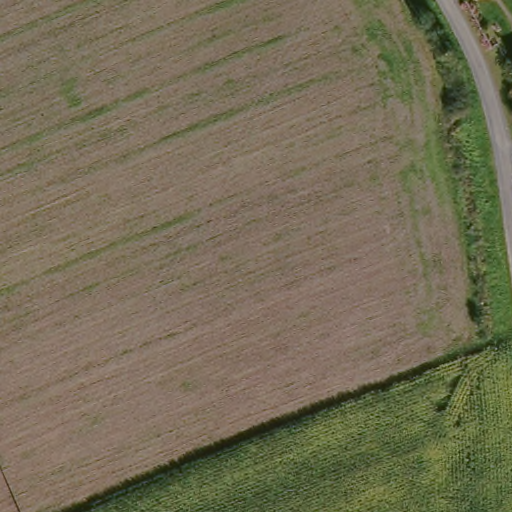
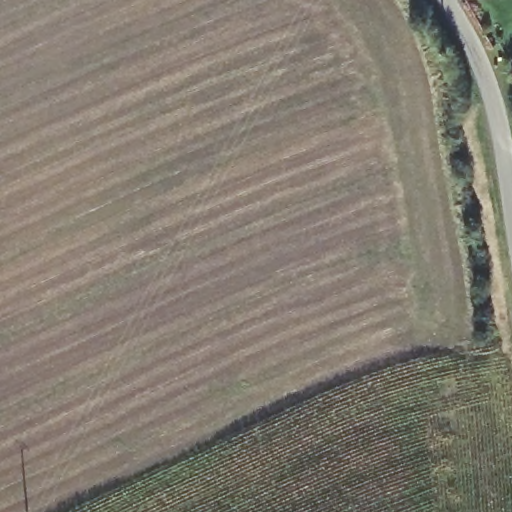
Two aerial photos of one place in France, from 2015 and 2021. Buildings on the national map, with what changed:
unchanged [(456,0),(460,0),(457,1),(456,0)]
unchanged [(512,64),(512,72),(509,66),(512,64)]

